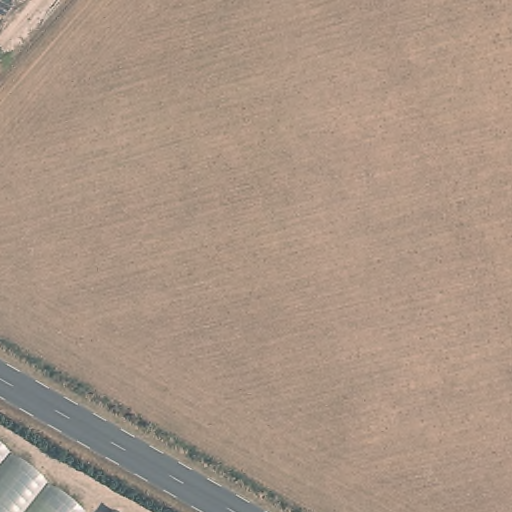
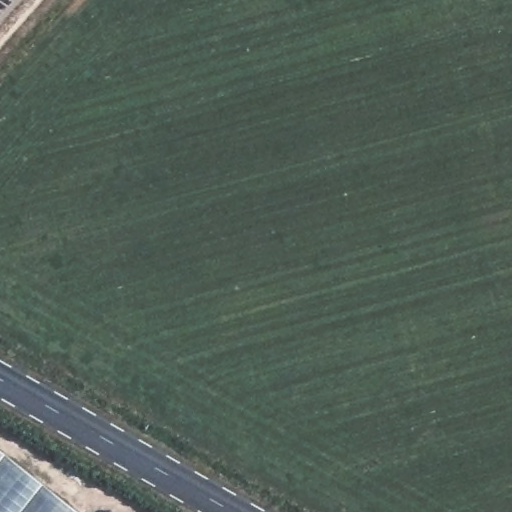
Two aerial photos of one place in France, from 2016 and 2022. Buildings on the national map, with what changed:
unchanged [(83,508),(80,512),(0,512),(0,445),(83,508)]
unchanged [(112,510),(114,512),(111,512),(112,510)]

